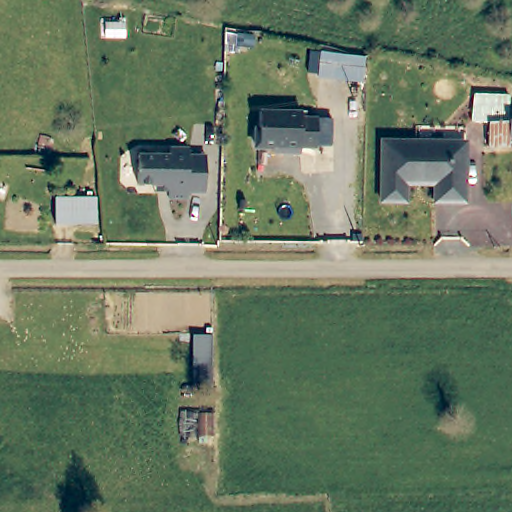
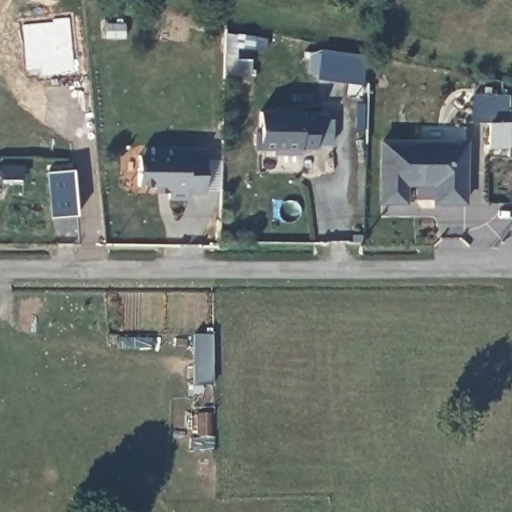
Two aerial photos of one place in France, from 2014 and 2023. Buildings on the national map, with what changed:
unchanged [(305,109),(305,115),(321,115),(321,145),(305,145),(305,151),(285,151),(285,149),(277,149),(277,146),(263,146),(258,141),(258,131),(263,126),(263,109),(305,109)]
unchanged [(507,149),(487,148),(488,123),(512,122),(512,138),(507,138),(507,149)]
unchanged [(466,143),(467,204),(436,204),(436,185),(407,185),(407,204),(383,204),(383,144),(466,143)]
unchanged [(170,158),(170,151),(188,152),(188,159),(205,159),(205,195),(187,195),(187,201),(169,201),(169,193),(157,192),(157,188),(137,188),(137,158),(170,158)]
unchanged [(94,198),(94,225),(54,225),(54,198),(94,198)]
unchanged [(210,338),(210,387),(191,387),(192,338),(210,338)]

